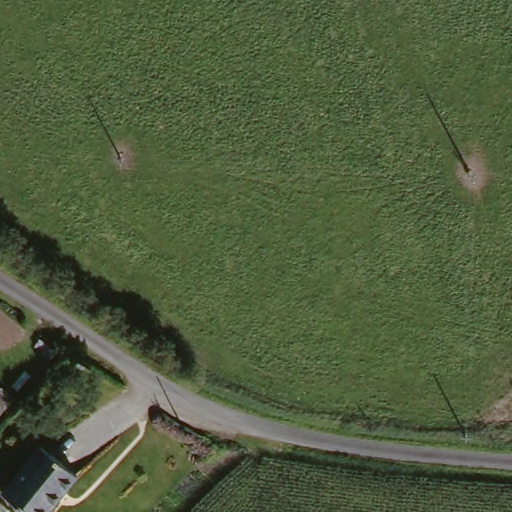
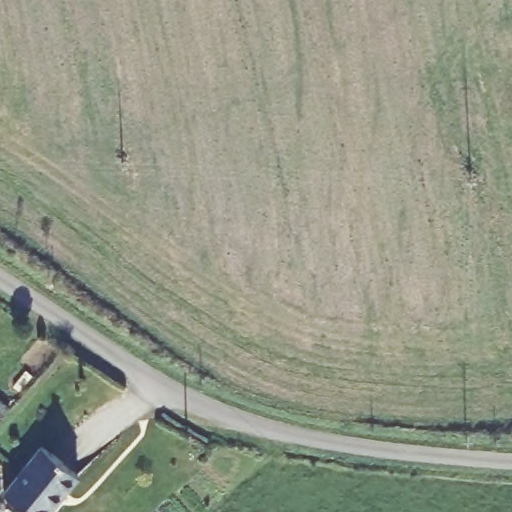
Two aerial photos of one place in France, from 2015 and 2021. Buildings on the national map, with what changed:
unchanged [(76,478),(48,512),(23,512),(2,493),(39,449),(76,478)]

